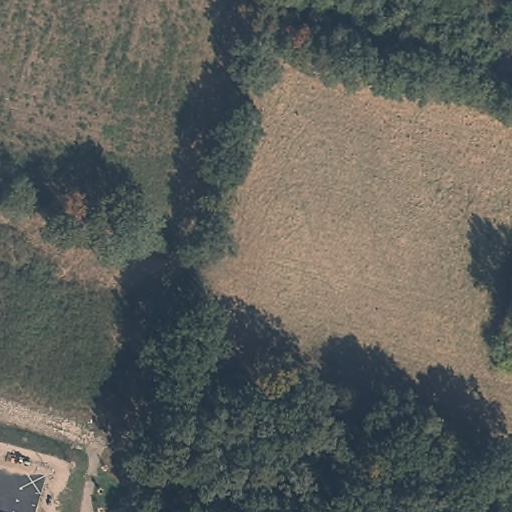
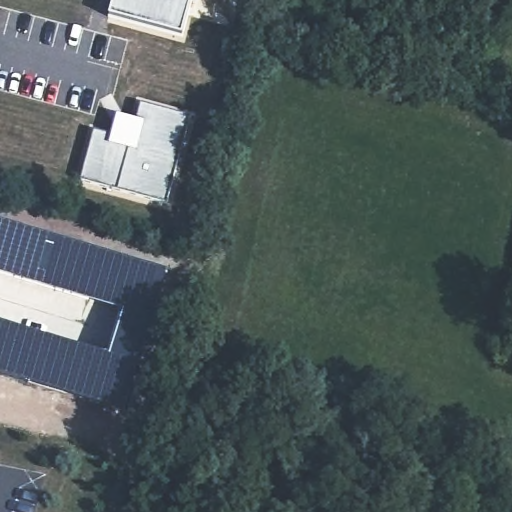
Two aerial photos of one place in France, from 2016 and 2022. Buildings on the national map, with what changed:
new [(190,0),(182,36),(108,16),(113,0),(190,0)]
new [(95,131),(111,135),(117,115),(138,120),(141,104),(188,117),(166,204),(80,180),(95,131)]
new [(110,358),(124,312),(0,273),(0,224),(163,274),(152,319),(127,411),(0,373),(0,323),(110,358)]

